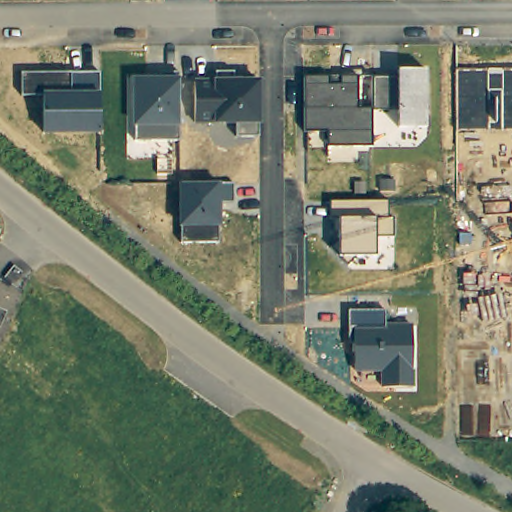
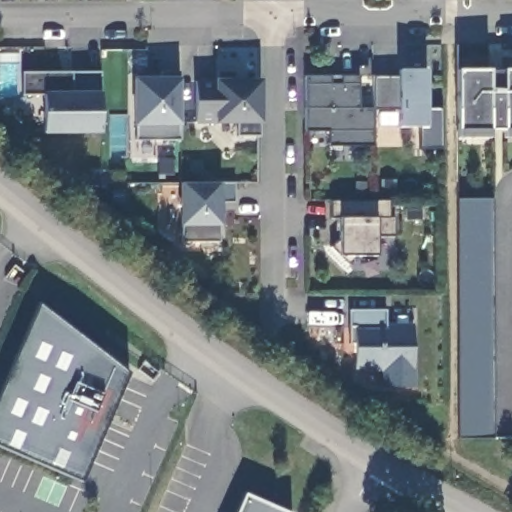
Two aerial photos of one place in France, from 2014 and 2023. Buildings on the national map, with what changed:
unchanged [(374,78),(399,80),(398,70),(427,70),(427,128),(397,127),(398,110),(372,109),(374,78)]
unchanged [(457,70),(512,70),(512,130),(457,130),(457,70)]
unchanged [(100,72),(100,94),(101,134),(44,134),(44,95),(22,95),(22,73),(100,72)]
unchanged [(137,126),(134,126),(134,77),(161,78),(161,72),(179,72),(180,80),(179,127),(179,140),(137,140),(137,126)]
unchanged [(196,80),(216,80),(216,72),(235,72),(235,80),(262,80),(260,125),(258,136),(236,136),(237,124),(214,125),(195,123),(196,80)]
unchanged [(373,146),(328,146),(328,132),(306,132),(307,76),(357,77),(357,110),(372,109),(373,146)]
unchanged [(221,185),(233,184),(234,201),(221,200),(221,227),(217,227),(217,242),(182,242),(181,226),(181,185),(221,185)]
new [(495,438),(460,438),(457,199),(493,199),(495,438)]
unchanged [(389,201),(388,219),(395,219),(394,237),(377,237),(375,256),(357,256),(347,265),(340,255),(332,248),(340,242),(340,219),(330,219),(331,202),(389,201)]
new [(125,373),(80,480),(0,446),(0,390),(37,305),(125,373)]
unchanged [(385,310),(385,324),(413,325),(414,387),(381,387),(381,371),(355,371),(353,343),(349,343),(348,310),(385,310)]
new [(244,492),(288,512),(235,512),(244,492)]

